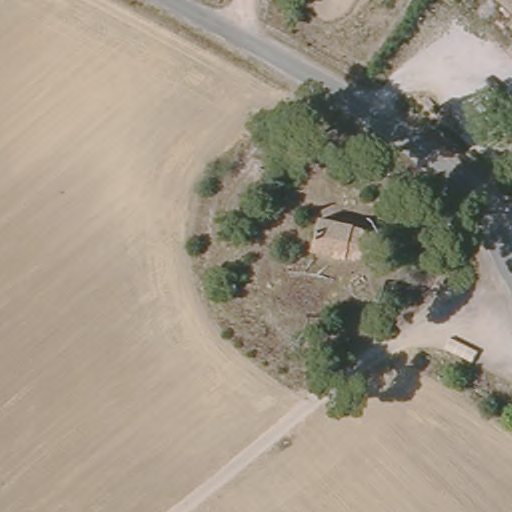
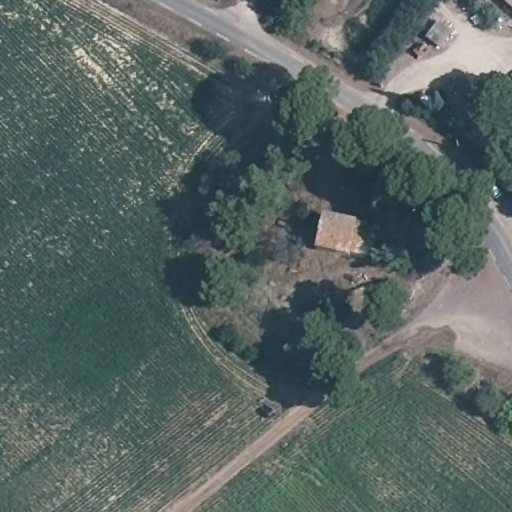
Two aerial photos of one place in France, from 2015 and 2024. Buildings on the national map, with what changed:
unchanged [(512,0),(512,10),(501,0),(512,0)]
unchanged [(373,237),(374,242),(373,245),(372,249),(371,251),(369,253),(367,255),(364,257),(361,258),(357,258),(317,252),(322,219),(362,225),(366,227),(368,229),(370,231),(372,234),(373,237)]

